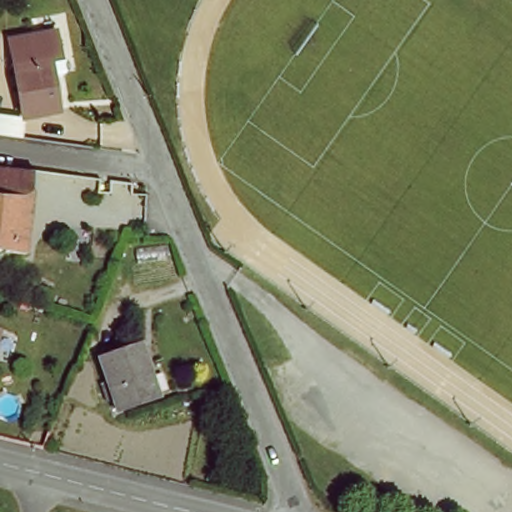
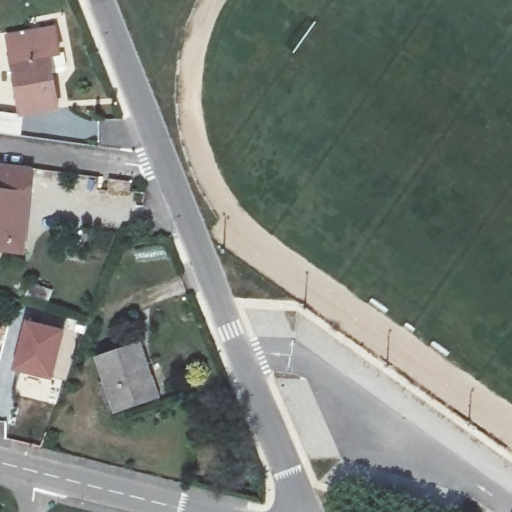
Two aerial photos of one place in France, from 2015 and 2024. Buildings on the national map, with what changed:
unchanged [(47,53),(57,106),(21,112),(12,60),(47,53)]
unchanged [(23,253),(0,251),(0,162),(32,166),(23,253)]
new [(23,319),(66,330),(55,380),(12,371),(23,319)]
unchanged [(0,331),(0,328),(1,328),(0,331)]
unchanged [(139,346),(157,398),(117,412),(98,361),(139,346)]

